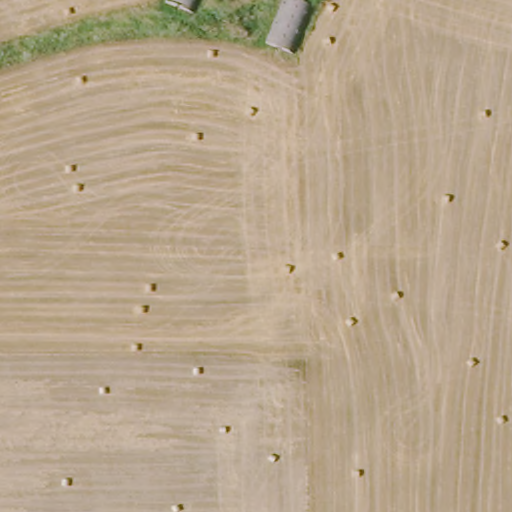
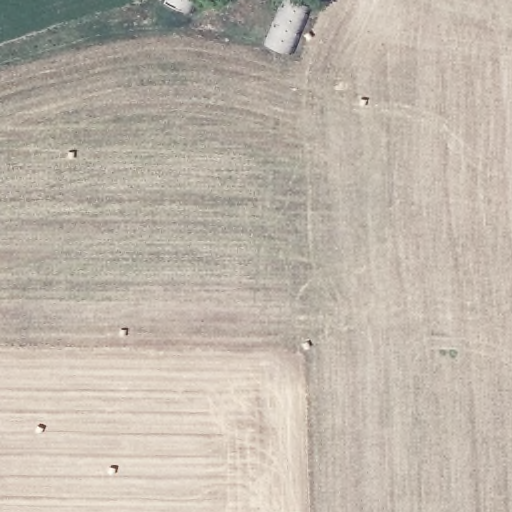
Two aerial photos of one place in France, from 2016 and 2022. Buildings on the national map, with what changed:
unchanged [(200,13),(175,1),(175,0),(206,0),(200,13)]
unchanged [(275,45),(295,0),(301,0),(319,9),(298,58),(275,45)]

